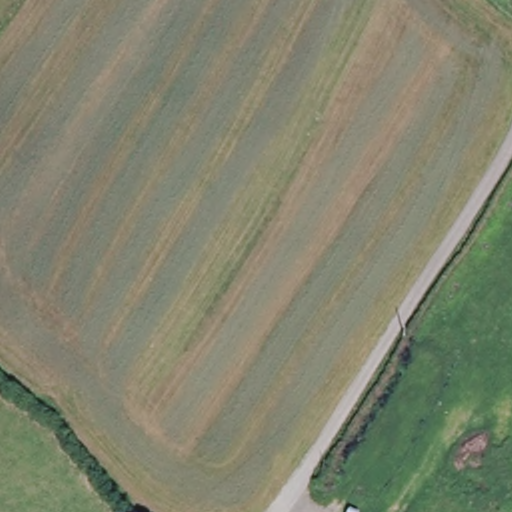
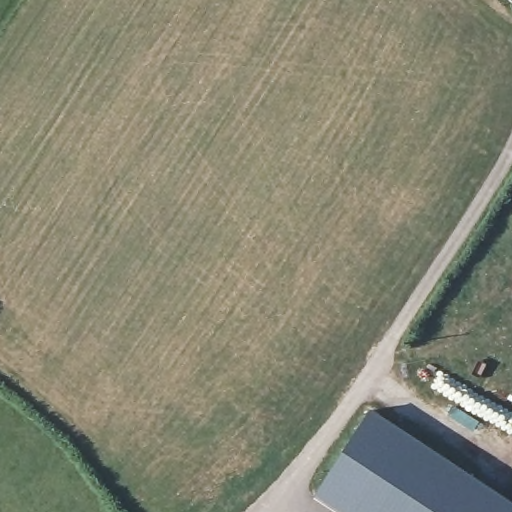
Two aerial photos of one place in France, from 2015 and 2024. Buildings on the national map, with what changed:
new [(512,500),(512,512),(337,512),(312,496),(371,407),(512,500)]

